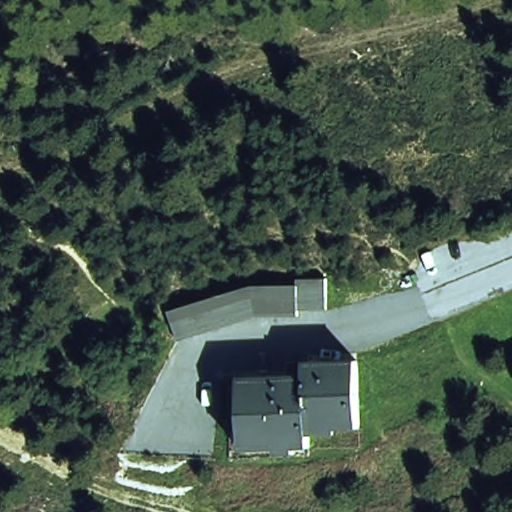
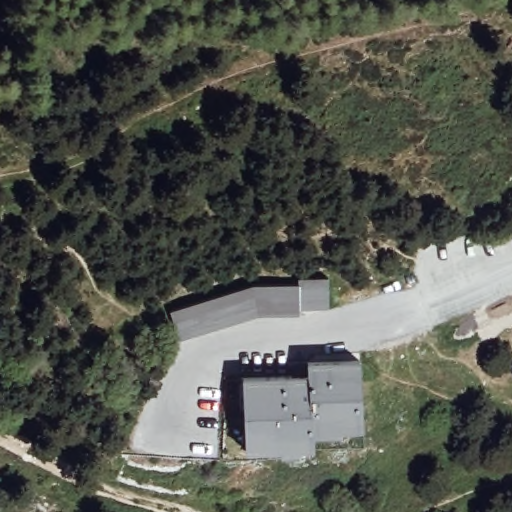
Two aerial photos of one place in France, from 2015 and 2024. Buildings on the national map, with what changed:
unchanged [(173,313),(252,287),(299,286),(299,279),(328,279),(328,309),(299,310),(299,316),(258,317),(179,341),(173,313)]
unchanged [(308,376),(308,363),(359,361),(363,428),(313,430),(314,448),(246,451),(243,378),(308,376)]

